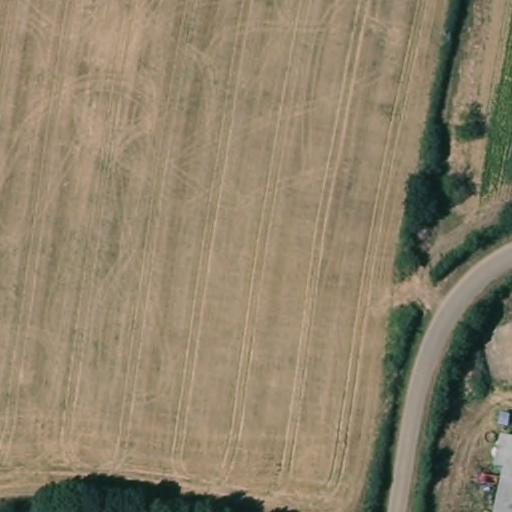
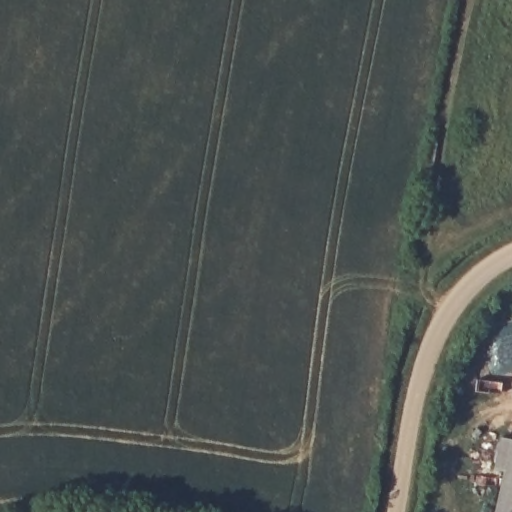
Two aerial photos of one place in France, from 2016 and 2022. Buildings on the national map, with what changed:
unchanged [(492,469),(498,439),(512,442),(512,512),(494,512),(502,472),(492,469)]

